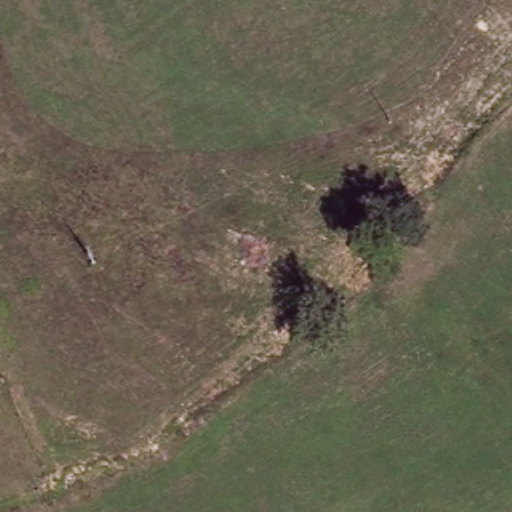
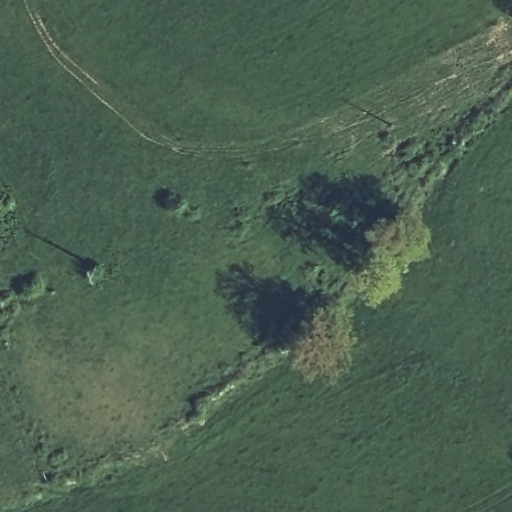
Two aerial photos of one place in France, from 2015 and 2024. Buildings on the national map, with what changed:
[]

